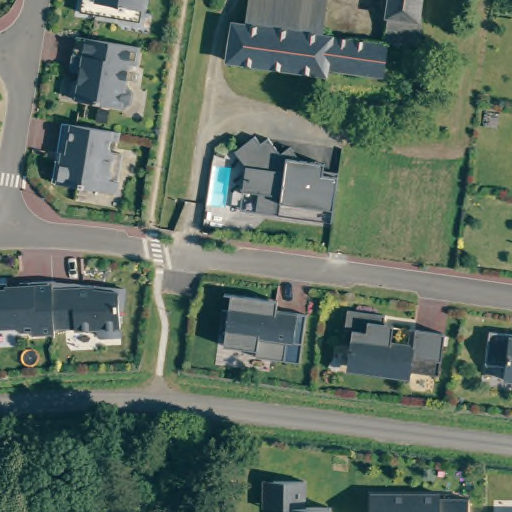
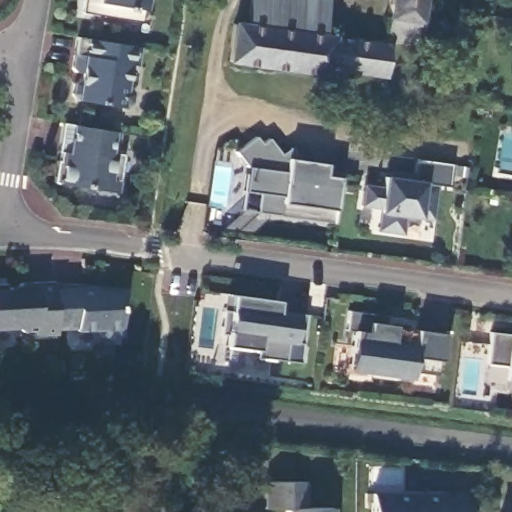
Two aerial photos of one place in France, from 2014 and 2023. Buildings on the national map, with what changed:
unchanged [(123,7),(121,19),(81,13),(83,0),(145,0),(143,10),(123,7)]
unchanged [(329,0),(326,28),(250,18),(253,0),(329,0)]
unchanged [(428,0),(421,42),(397,38),(388,37),(394,0),(428,0)]
unchanged [(392,66),(337,58),(335,68),(233,52),(239,17),(250,18),(326,28),(388,37),(397,38),(392,66)]
unchanged [(72,94),(74,83),(79,79),(81,73),(74,71),(71,68),(76,37),(140,47),(137,66),(129,64),(126,86),(127,86),(132,93),(131,102),(123,108),(76,100),(72,94)]
unchanged [(118,181),(101,178),(99,190),(52,182),(62,123),(76,125),(119,132),(116,153),(123,154),(118,181)]
unchanged [(256,136),(263,146),(270,139),(280,153),(291,147),(299,160),(326,163),(323,176),(337,178),(333,208),(332,222),(255,212),(258,194),(243,193),(247,169),(235,151),(256,136)]
new [(364,185),(383,188),(384,177),(392,178),(393,173),(414,176),(416,158),(453,164),(450,187),(437,185),(433,220),(405,216),(402,234),(377,231),(380,208),(361,206),(364,185)]
unchanged [(55,329),(55,334),(34,335),(33,331),(20,332),(15,327),(0,328),(0,284),(7,284),(8,290),(15,289),(20,283),(53,282),(53,285),(55,329)]
unchanged [(123,310),(120,310),(121,337),(102,337),(97,330),(76,331),(76,328),(55,329),(53,285),(74,284),(95,286),(95,289),(105,291),(106,288),(126,290),(123,310)]
unchanged [(270,300),(268,310),(307,315),(300,363),(256,357),(257,350),(225,346),(226,335),(220,334),(223,310),(230,311),(232,294),(270,300)]
unchanged [(368,367),(348,365),(352,331),(345,330),(348,310),(385,316),(384,325),(411,329),(415,330),(445,334),(439,376),(411,372),(410,377),(367,371),(368,367)]
unchanged [(512,335),(512,381),(504,380),(506,366),(486,364),(490,332),(512,335)]
unchanged [(305,508),(331,508),(331,512),(287,512),(287,509),(274,509),(264,508),(264,482),(305,482),(305,508)]
unchanged [(441,494),(441,499),(469,499),(469,512),(371,512),(371,493),(441,494)]

